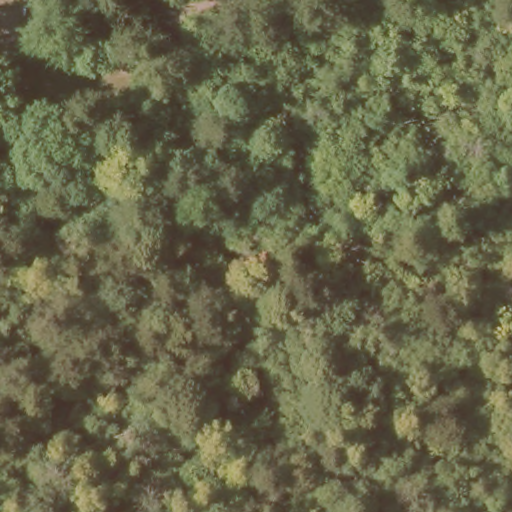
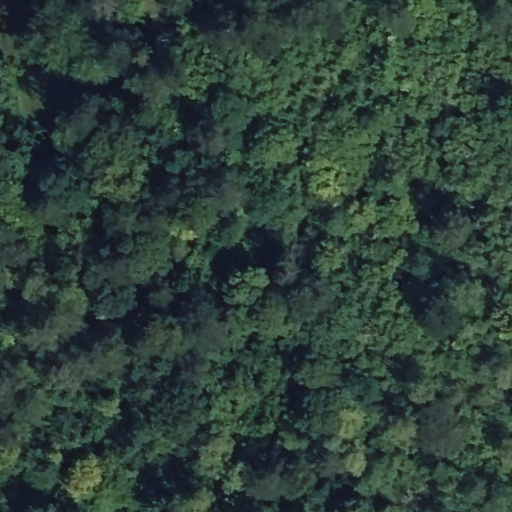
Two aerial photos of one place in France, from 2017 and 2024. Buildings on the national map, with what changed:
unchanged [(305,293),(290,293),(290,248),(305,248),(305,293)]

